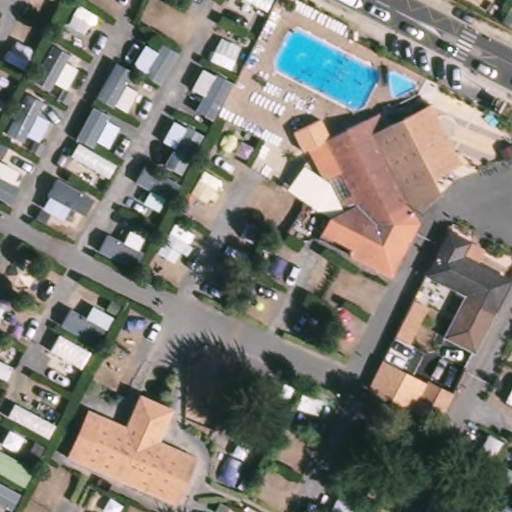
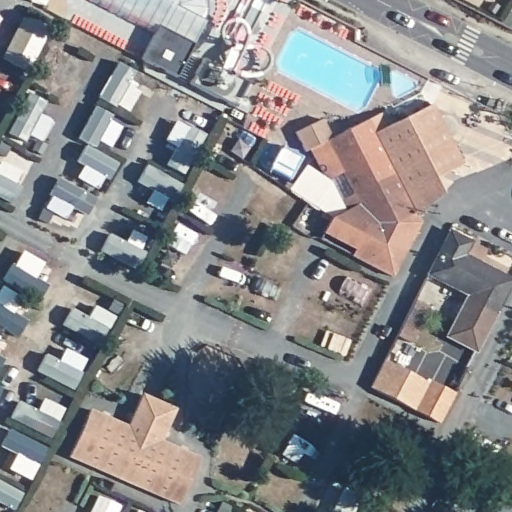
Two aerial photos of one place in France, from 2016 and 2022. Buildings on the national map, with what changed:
new [(209,3),(208,17),(192,47),(157,29),(154,36),(81,0),(208,0),(209,3)]
new [(154,36),(157,29),(192,47),(194,48),(177,79),(141,61),(154,36)]
unchanged [(373,133),(430,103),(461,163),(434,178),(441,193),(419,204),(411,189),(404,193),(373,133)]
unchanged [(414,230),(393,276),(352,255),(354,250),(323,234),(329,218),(343,212),(326,180),(309,148),(366,120),(373,133),(404,193),(411,189),(419,204),(422,209),(407,217),(418,223),(414,230)]
unchanged [(454,289),(428,275),(449,233),(469,242),(462,256),(469,260),(454,289)]
unchanged [(511,281),(474,352),(445,336),(467,296),(454,289),(469,260),(511,281)]
unchanged [(125,423),(139,391),(173,406),(159,438),(197,454),(177,500),(68,453),(88,406),(125,423)]

